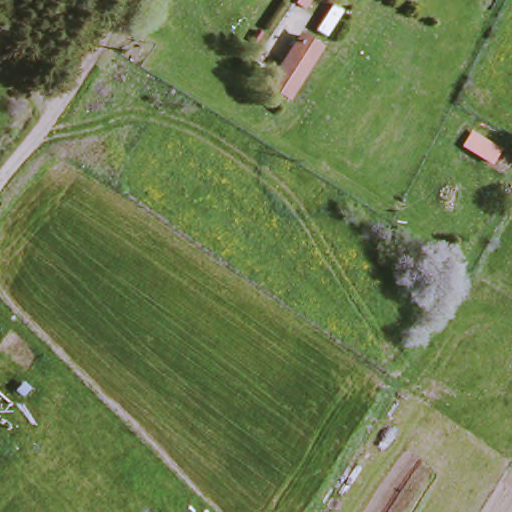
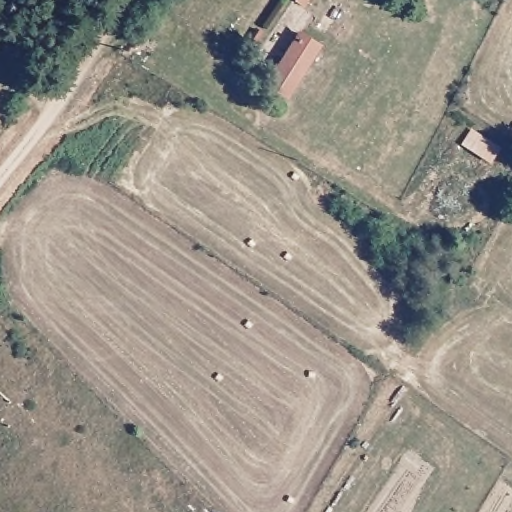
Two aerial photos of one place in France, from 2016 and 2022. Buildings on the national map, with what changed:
unchanged [(320,49),(302,76),(282,63),(299,37),(320,49)]

